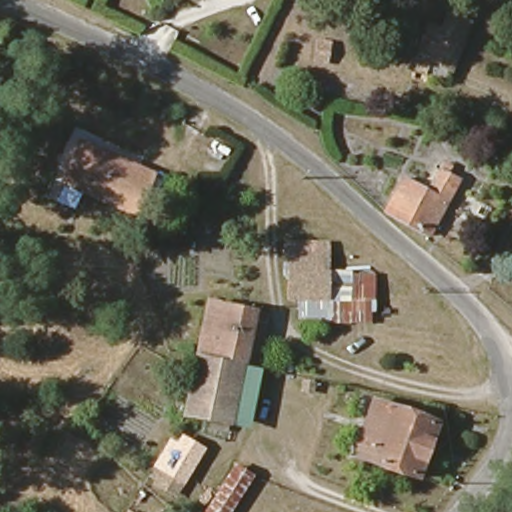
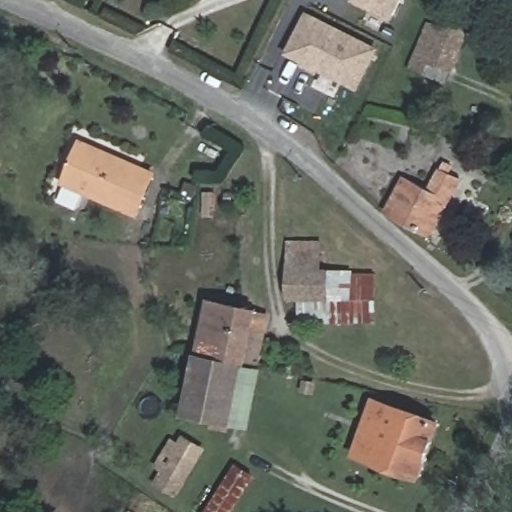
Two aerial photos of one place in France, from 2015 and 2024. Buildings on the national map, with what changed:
new [(392,15),(363,0),(400,0),(392,15)]
new [(357,87),(289,52),(307,16),(376,49),(357,87)]
unchanged [(416,72),(421,60),(434,25),(447,31),(453,16),(473,25),(467,40),(469,40),(451,84),(428,75),(427,77),(416,72)]
unchanged [(135,216),(64,186),(81,145),(152,176),(135,216)]
unchanged [(390,213),(408,179),(433,192),(444,171),(448,164),(456,168),(452,175),(463,181),(434,237),(390,214),(390,213)]
unchanged [(385,277),(385,303),(377,303),(376,326),(342,326),(342,318),(309,317),(309,301),(298,301),(299,245),(338,246),(338,272),(385,277)]
demolished [(255,253),(260,289),(240,290),(234,255),(255,253)]
unchanged [(245,368),(243,368),(197,359),(209,304),(256,314),(268,316),(257,371),(245,368)]
unchanged [(231,425),(186,416),(197,359),(243,368),(231,425)]
unchanged [(323,386),(322,395),(313,393),(315,385),(323,386)]
unchanged [(437,422),(418,474),(355,452),(374,399),(437,422)]
unchanged [(184,490),(176,486),(169,499),(156,491),(158,487),(151,483),(172,449),(179,453),(183,445),(203,457),(184,490)]
unchanged [(206,512),(236,463),(253,474),(230,512),(206,512)]

